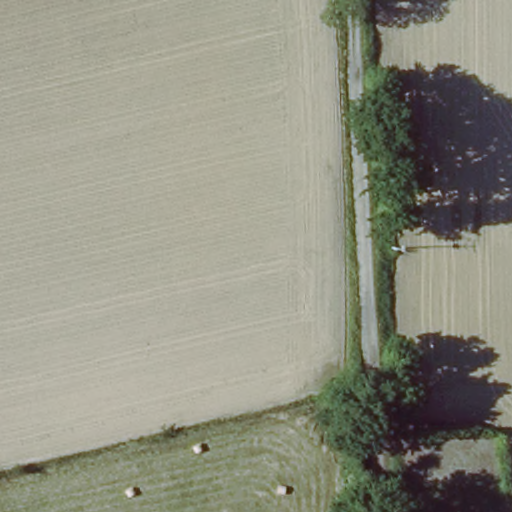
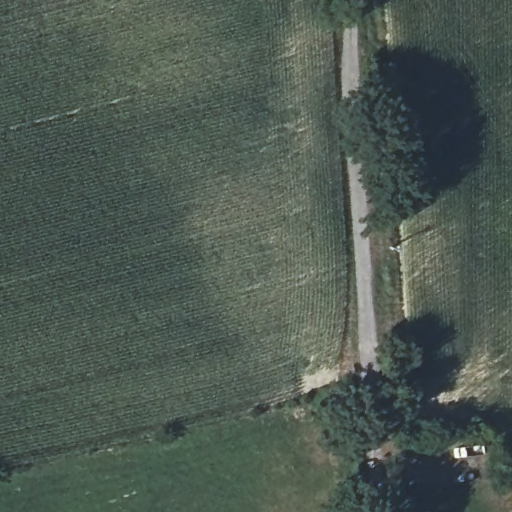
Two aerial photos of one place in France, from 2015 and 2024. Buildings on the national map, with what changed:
[]

